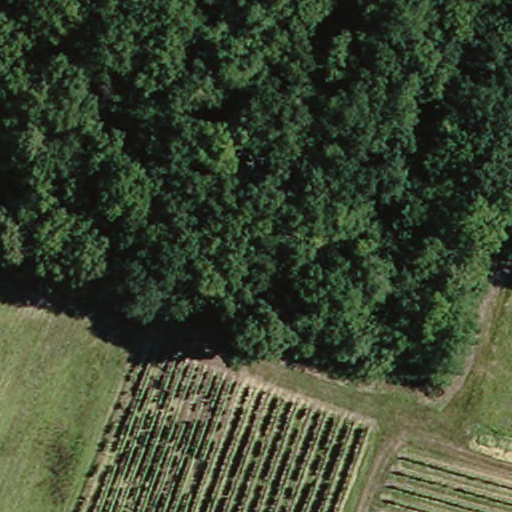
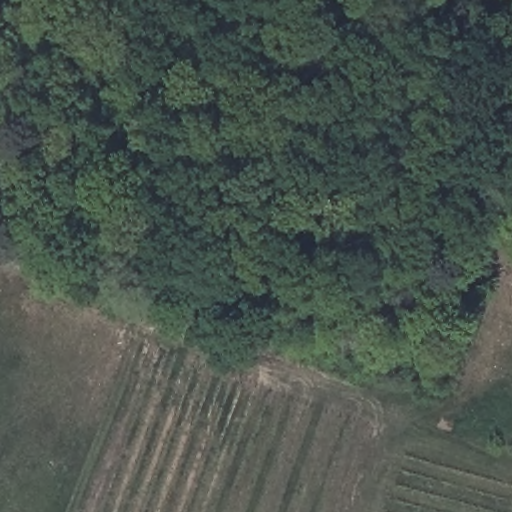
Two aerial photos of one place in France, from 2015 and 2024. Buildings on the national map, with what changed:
[]

